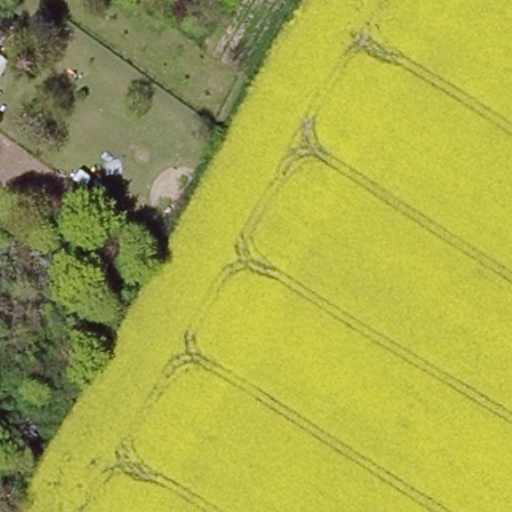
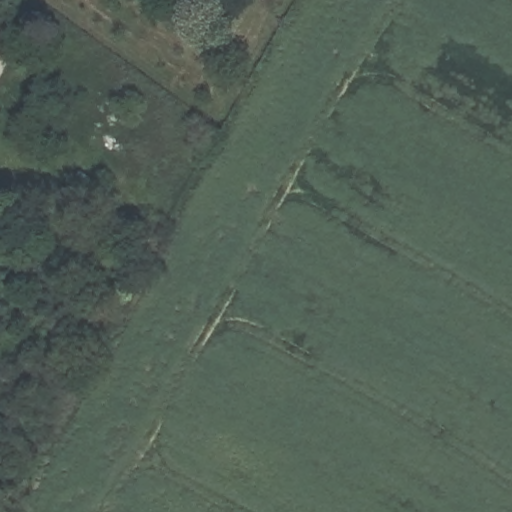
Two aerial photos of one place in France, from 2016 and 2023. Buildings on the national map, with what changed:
unchanged [(0,40),(0,23),(7,30),(0,40)]

